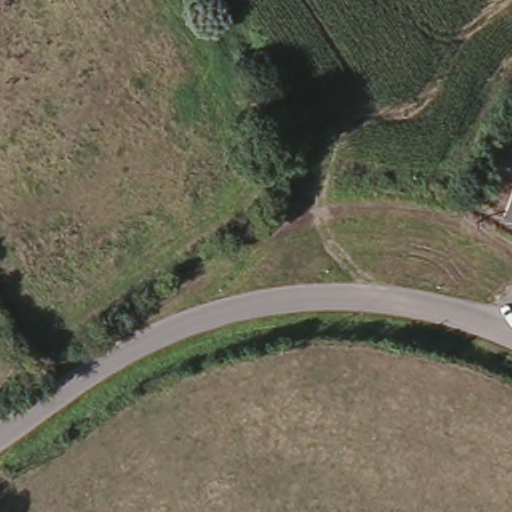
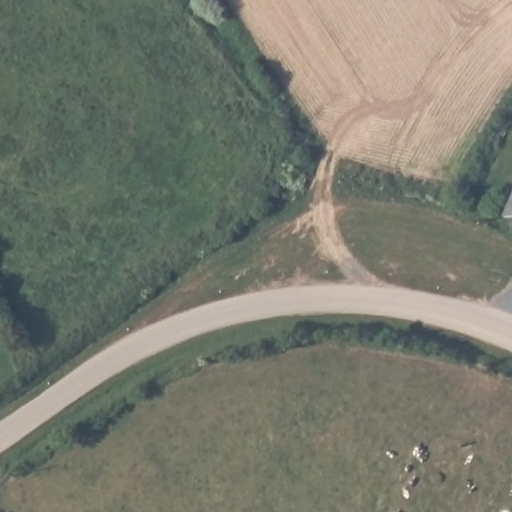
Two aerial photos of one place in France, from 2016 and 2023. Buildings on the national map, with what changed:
unchanged [(512,200),(512,230),(502,224),(512,200)]

